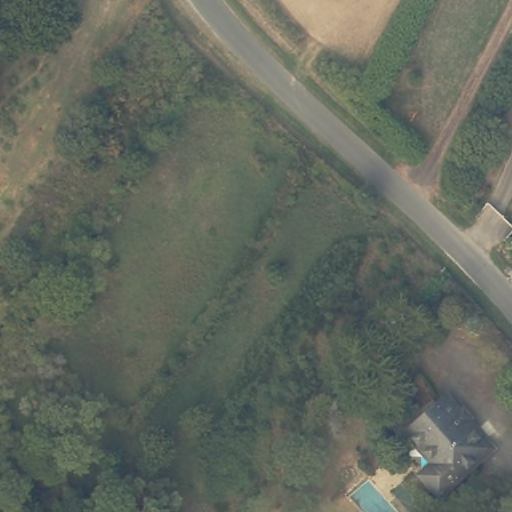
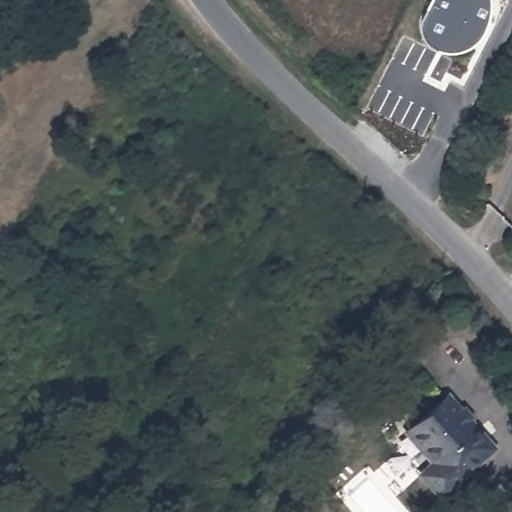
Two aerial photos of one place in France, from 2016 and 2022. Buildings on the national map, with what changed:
new [(492,12),(487,26),(480,37),(470,45),(459,49),(451,49),(441,48),(434,44),(425,38),(420,28),(420,18),(430,0),(492,0),(492,12)]
unchanged [(500,448),(442,493),(423,470),(435,459),(408,425),(453,390),(500,448)]

